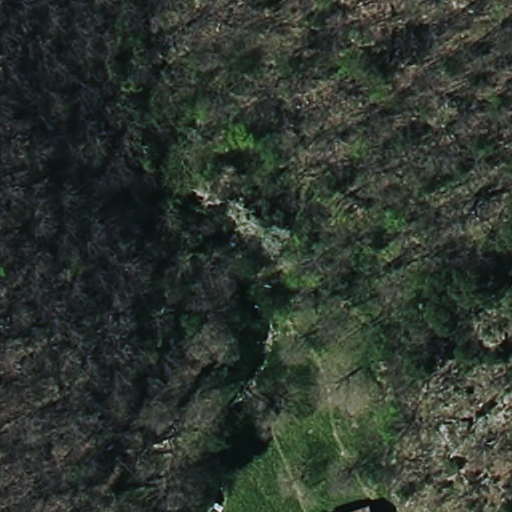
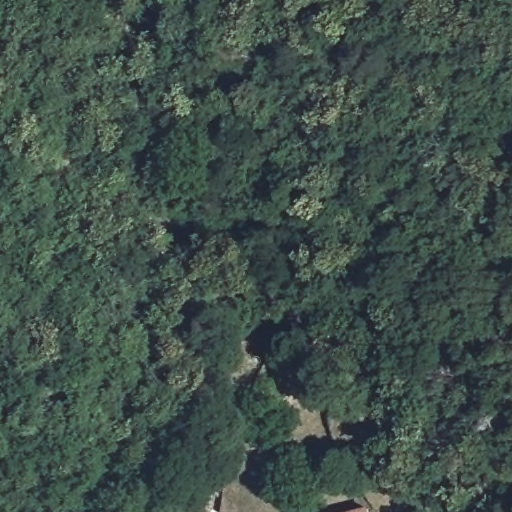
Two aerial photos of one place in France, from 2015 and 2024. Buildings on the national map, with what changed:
unchanged [(368,502),(371,512),(336,512),(368,502)]

